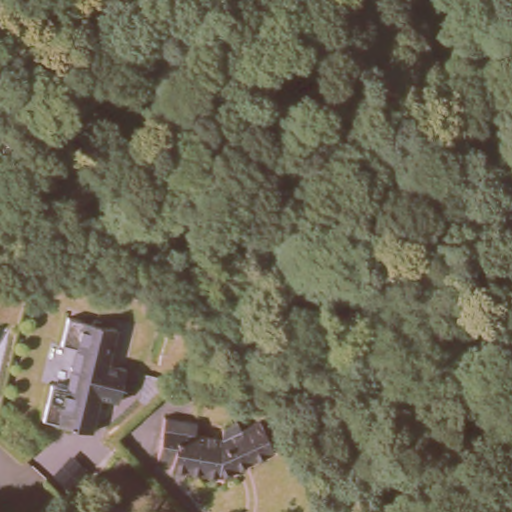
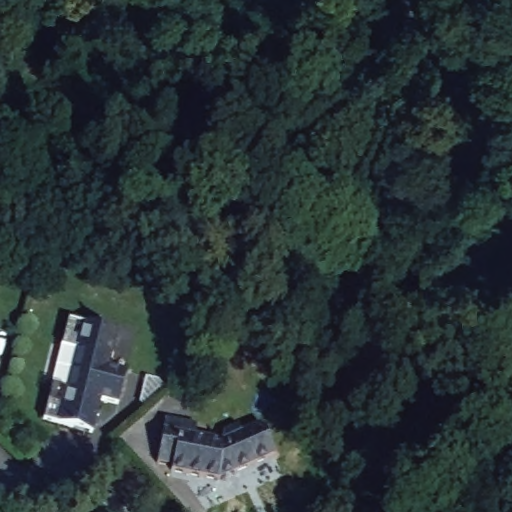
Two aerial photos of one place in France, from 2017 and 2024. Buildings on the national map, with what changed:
unchanged [(72,315),(96,321),(99,318),(105,319),(106,323),(121,327),(112,362),(130,367),(122,400),(104,395),(98,419),(96,429),(77,425),(47,417),(55,382),(70,386),(80,346),(65,342),(72,315)]
unchanged [(278,454),(237,473),(238,475),(236,478),(229,482),(225,480),(224,478),(222,479),(175,471),(175,466),(160,463),(168,418),(201,424),(199,435),(225,440),(227,431),(241,424),(245,432),(264,423),(278,454)]
unchanged [(104,476),(123,459),(154,494),(135,512),(104,476)]

